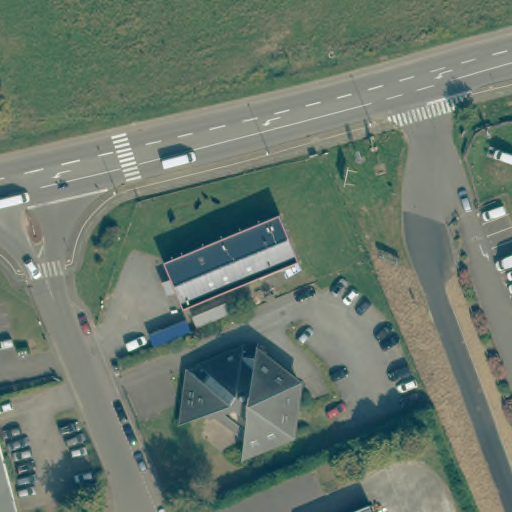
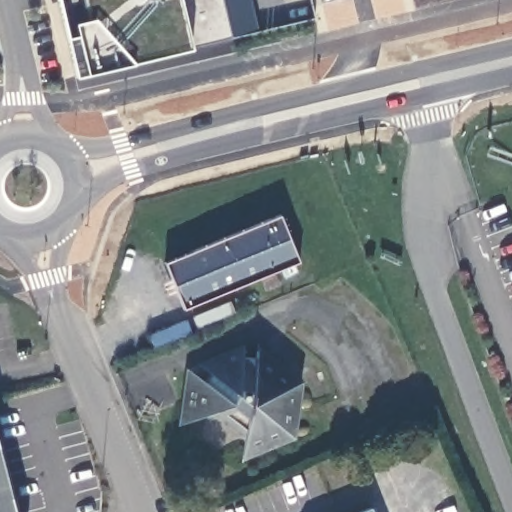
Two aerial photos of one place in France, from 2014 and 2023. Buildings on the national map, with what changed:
new [(250,0),(257,31),(191,48),(75,77),(58,0),(250,0)]
unchanged [(281,217),(300,262),(184,309),(165,263),(281,217)]
unchanged [(247,351),(247,355),(261,357),(263,353),(302,385),(296,437),(248,456),(249,439),(223,418),(218,420),(215,413),(191,422),(198,376),(207,382),(215,375),(206,366),(247,351)]
unchanged [(0,446),(16,512),(0,512),(0,446)]
unchanged [(372,510),(373,512),(368,512),(372,510)]

